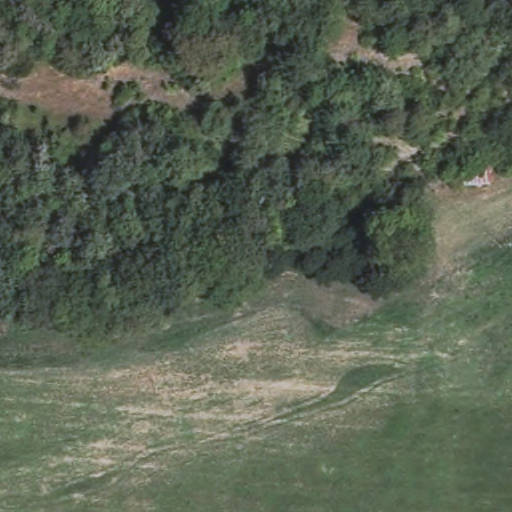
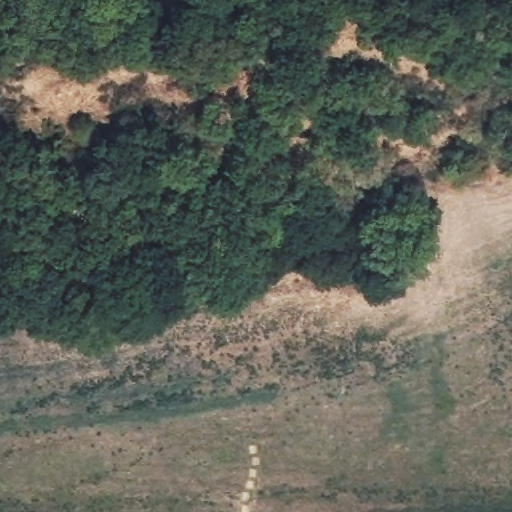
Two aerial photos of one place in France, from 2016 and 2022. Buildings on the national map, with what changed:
unchanged [(488,169),(489,186),(453,188),(452,171),(488,169)]

